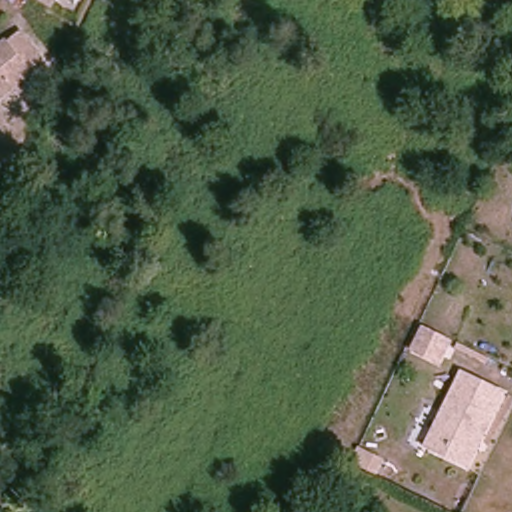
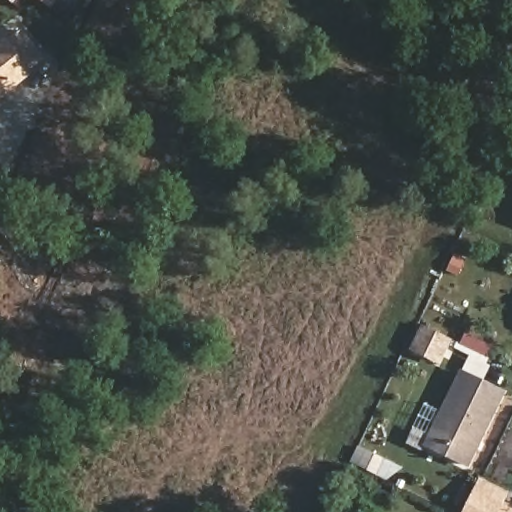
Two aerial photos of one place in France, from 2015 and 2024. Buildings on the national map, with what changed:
unchanged [(45,4),(39,0),(47,0),(45,4)]
unchanged [(6,44),(17,33),(40,63),(13,86),(0,98),(0,43),(2,41),(6,44)]
unchanged [(453,336),(442,359),(415,345),(427,323),(453,336)]
unchanged [(432,434),(465,370),(506,391),(469,464),(448,454),(428,443),(432,434)]
new [(507,495),(502,505),(499,512),(465,512),(475,491),(480,481),(507,495)]

